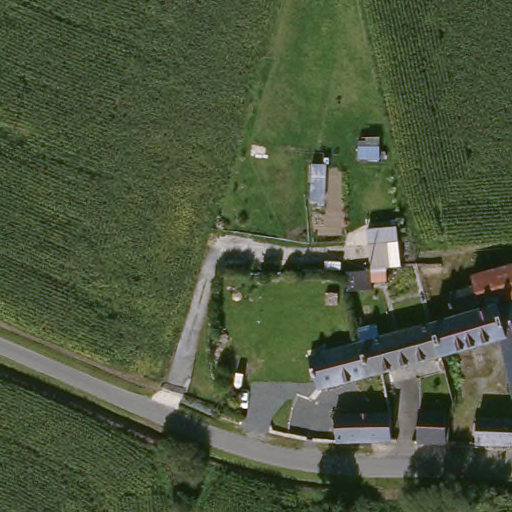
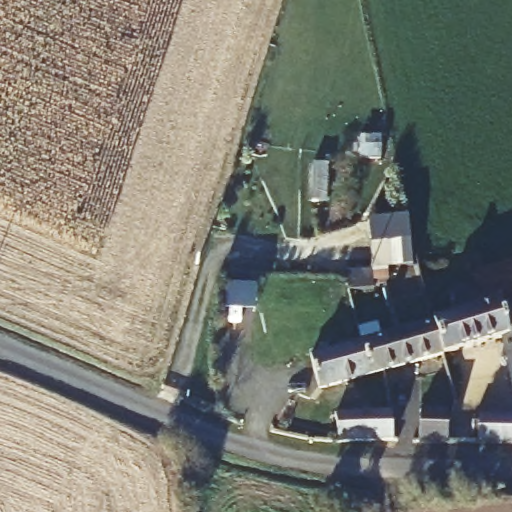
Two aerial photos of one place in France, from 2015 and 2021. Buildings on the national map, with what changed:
unchanged [(495,343),(441,358),(435,322),(443,320),(456,317),(452,294),(468,290),(475,288),(471,276),(478,275),(512,267),(512,400),(506,400),(495,343)]
unchanged [(383,372),(370,376),(362,341),(435,322),(441,358),(383,372)]
unchanged [(362,341),(370,376),(321,387),(311,353),(362,341)]
unchanged [(415,440),(415,421),(415,406),(452,406),(450,422),(449,440),(415,440)]
unchanged [(388,416),(389,439),(338,439),(339,416),(388,416)]
unchanged [(475,420),(511,420),(511,429),(512,429),(512,445),(474,445),(475,420)]

